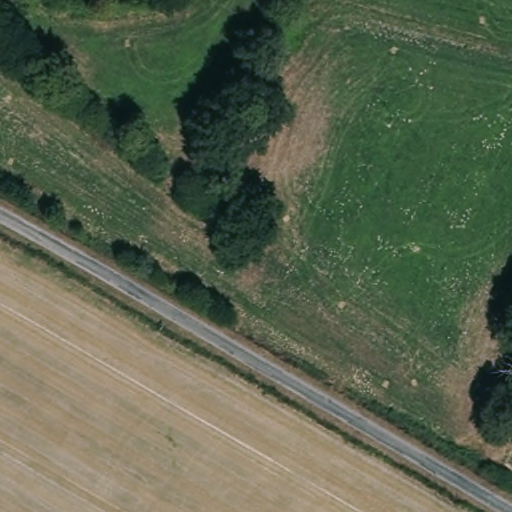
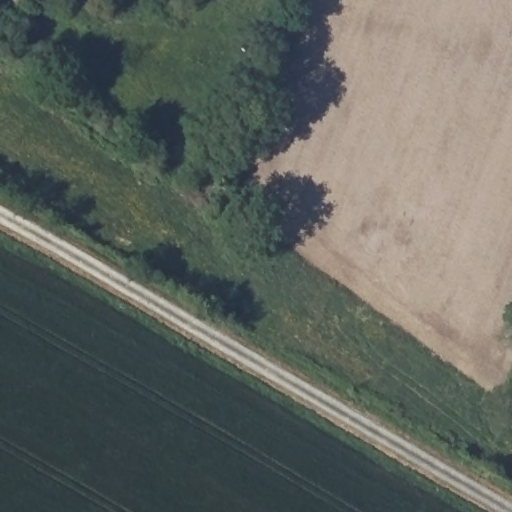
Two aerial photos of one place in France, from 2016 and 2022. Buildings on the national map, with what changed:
[]

